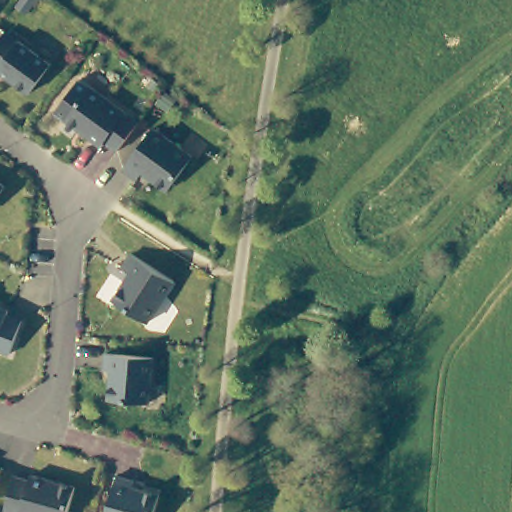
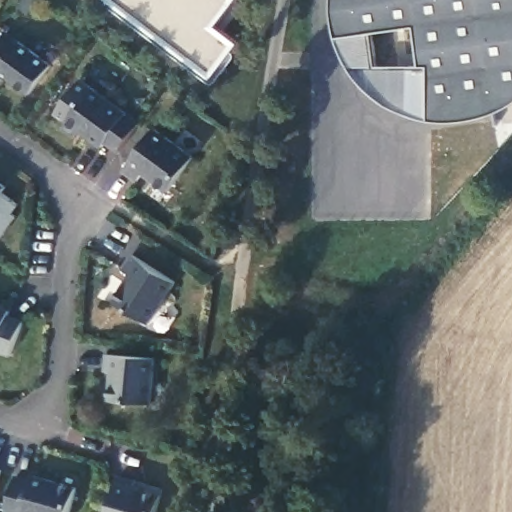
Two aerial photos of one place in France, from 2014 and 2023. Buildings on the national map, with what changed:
new [(239,36),(240,39),(234,47),(216,72),(214,73),(117,0),(233,0),(218,21),(239,36)]
new [(496,113),(485,116),(473,119),(460,121),(449,123),(435,122),(425,120),(416,118),(403,112),(392,107),(381,100),(369,90),(360,81),(352,70),(345,59),(337,39),(334,25),(332,13),(332,0),(512,0),(512,104),(506,108),(496,113)]
unchanged [(52,63),(32,91),(0,69),(0,40),(6,31),(52,63)]
unchanged [(141,121),(121,149),(108,140),(105,144),(66,116),(90,84),(141,121)]
unchanged [(155,126),(195,154),(171,189),(145,170),(140,178),(126,168),(155,126)]
unchanged [(4,185),(0,190),(0,183),(4,185)]
unchanged [(112,299),(130,273),(122,268),(131,254),(174,281),(147,322),(112,299)]
unchanged [(9,309),(7,313),(22,319),(10,352),(0,348),(0,305),(9,309)]
unchanged [(150,401),(110,399),(111,369),(105,369),(105,353),(152,355),(150,401)]
unchanged [(4,509),(12,474),(28,479),(30,474),(74,486),(67,512),(16,512),(4,509)]
unchanged [(114,478),(130,482),(129,489),(157,496),(152,512),(105,512),(114,478)]

